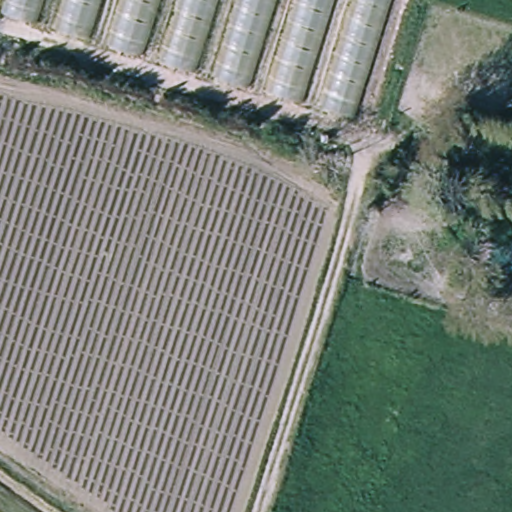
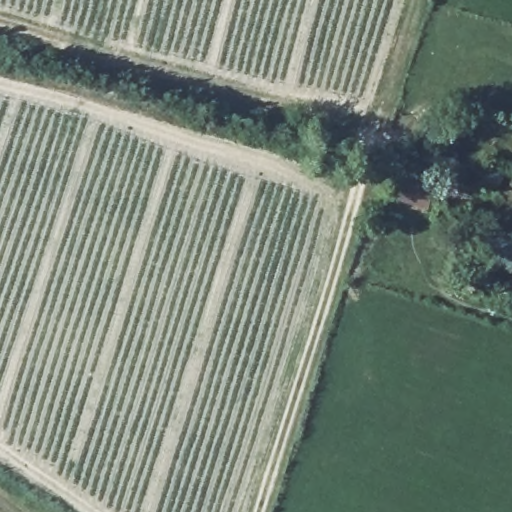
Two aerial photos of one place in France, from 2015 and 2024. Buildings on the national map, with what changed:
demolished [(0,16),(0,0),(394,0),(355,122),(0,16)]
unchanged [(432,192),(427,212),(395,203),(402,183),(432,192)]
unchanged [(512,276),(485,268),(495,229),(512,234),(512,276)]

